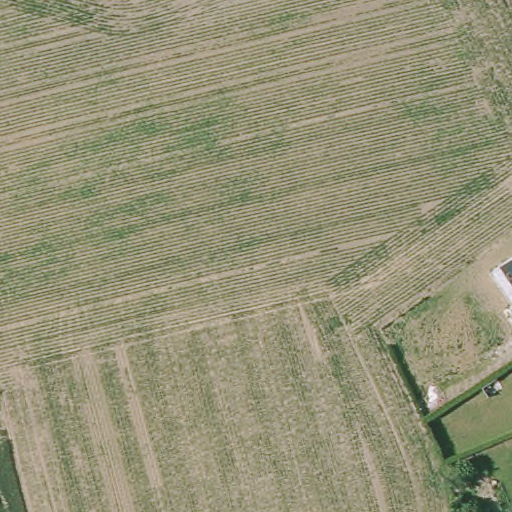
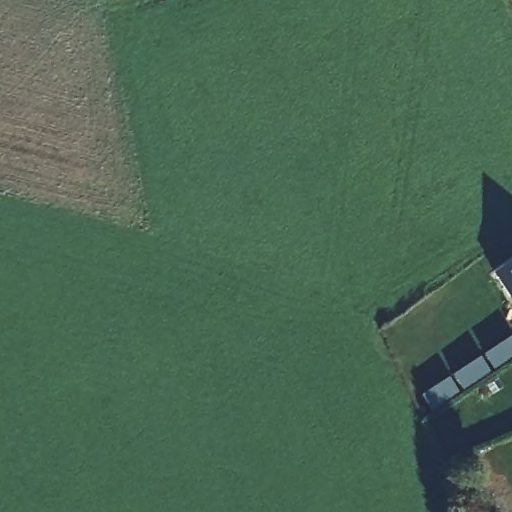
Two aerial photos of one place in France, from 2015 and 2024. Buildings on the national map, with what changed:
unchanged [(502,267),(512,260),(512,282),(502,267)]
new [(480,358),(487,367),(490,365),(483,355),(512,337),(512,364),(433,416),(421,397),(480,358)]

